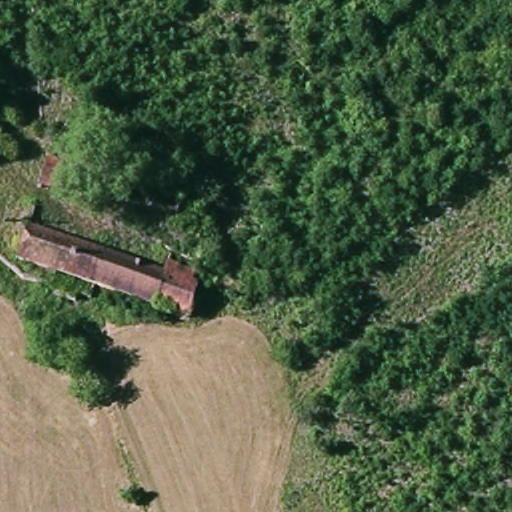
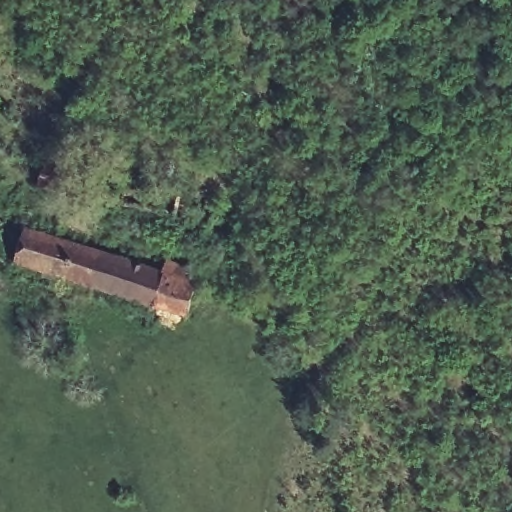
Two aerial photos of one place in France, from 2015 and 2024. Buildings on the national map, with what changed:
unchanged [(95,281),(33,259),(45,210),(58,215),(55,227),(165,264),(170,247),(204,258),(201,277),(191,317),(95,281)]

